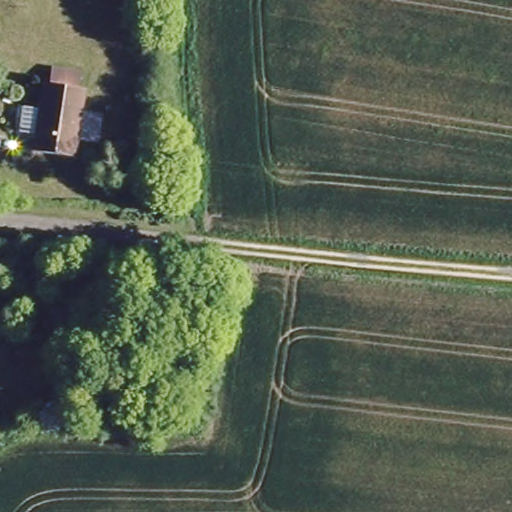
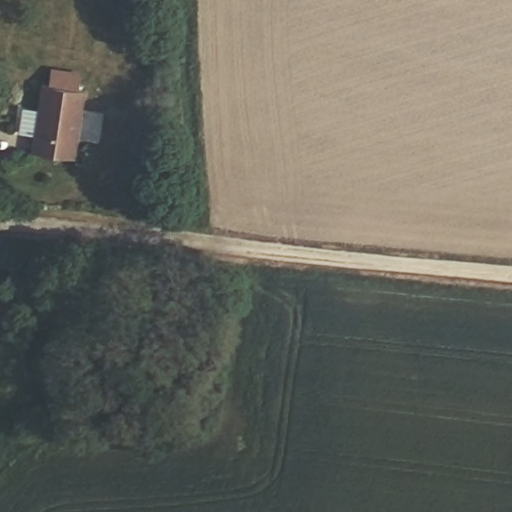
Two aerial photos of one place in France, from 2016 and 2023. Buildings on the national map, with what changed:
unchanged [(83,86),(75,153),(27,150),(33,76),(83,86)]

